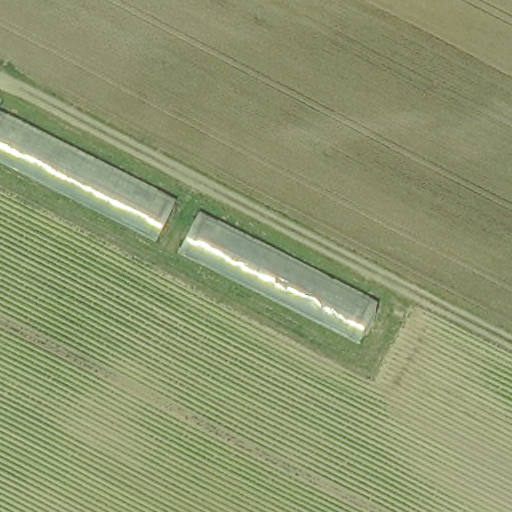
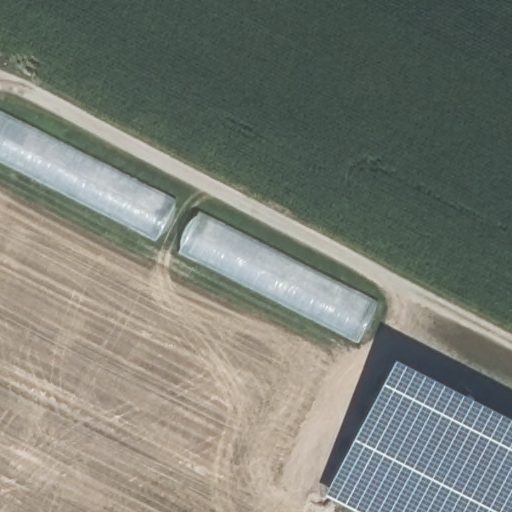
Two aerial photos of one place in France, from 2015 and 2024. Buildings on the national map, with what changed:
unchanged [(0,165),(0,115),(175,202),(158,239),(0,165)]
unchanged [(364,340),(181,248),(197,212),(381,304),(364,340)]
new [(368,512),(324,490),(394,371),(512,428),(512,512),(368,512)]

